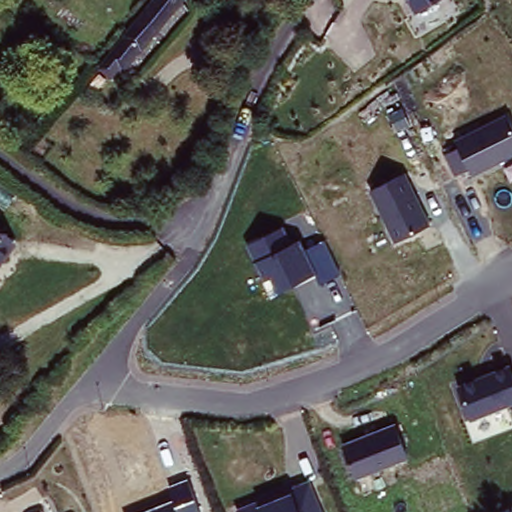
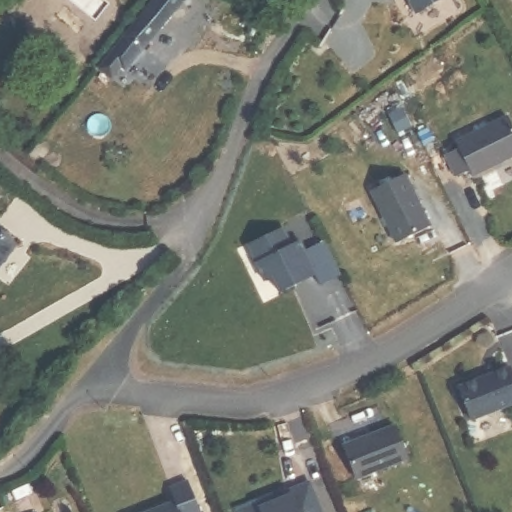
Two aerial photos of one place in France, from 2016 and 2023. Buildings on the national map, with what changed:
unchanged [(120,69),(116,65),(106,77),(94,67),(107,52),(151,0),(179,0),(120,69)]
unchanged [(411,12),(404,0),(433,0),(411,12)]
unchanged [(512,158),(473,176),(470,169),(455,176),(445,155),(458,148),(453,138),(503,115),(512,128),(512,158)]
unchanged [(405,174),(430,227),(392,245),(369,193),(405,174)]
unchanged [(19,243),(0,263),(0,227),(19,243)]
unchanged [(320,285),(316,275),(278,292),(270,278),(263,281),(248,246),(281,228),(289,245),(300,239),(305,249),(325,240),(340,273),(320,285)]
unchanged [(512,405),(468,421),(453,386),(507,366),(512,375),(512,405)]
unchanged [(409,457),(355,478),(341,444),(391,424),(409,457)]
unchanged [(168,486),(189,479),(201,512),(144,512),(173,500),(168,486)]
unchanged [(322,512),(237,512),(235,508),(309,480),(322,512)]

